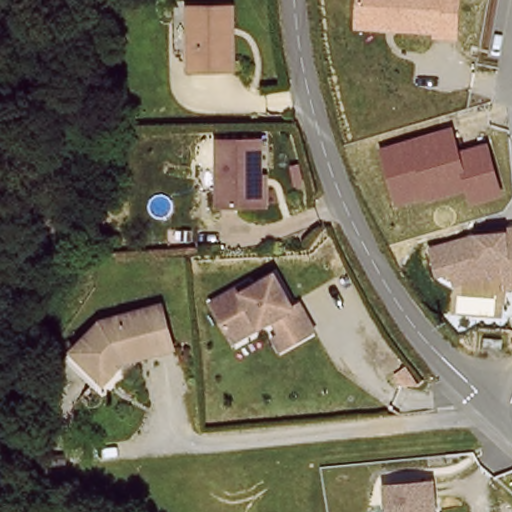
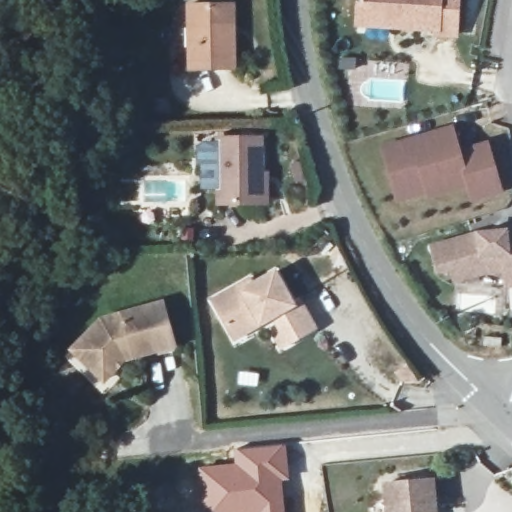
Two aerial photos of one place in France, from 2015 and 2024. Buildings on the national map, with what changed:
unchanged [(434,34),(357,28),(359,0),(461,0),(459,39),(434,38),(434,34)]
unchanged [(195,73),(194,53),(180,53),(179,9),(232,7),(239,7),(239,39),(240,72),(195,73)]
unchanged [(473,202),(469,190),(427,201),(425,196),(398,204),(381,149),(457,128),(464,150),(492,141),(506,194),(473,202)]
unchanged [(265,140),(267,206),(222,206),(222,140),(265,140)]
unchanged [(507,290),(504,274),(481,276),(457,287),(451,272),(440,275),(430,246),(477,231),(512,227),(512,289),(507,290)]
unchanged [(278,341),(285,337),(277,323),(264,331),(237,346),(231,335),(215,307),(242,291),(252,285),(255,290),(278,277),(297,310),(303,306),(320,334),(292,350),(285,354),(278,341)]
unchanged [(70,349),(99,318),(160,300),(173,343),(133,355),(131,349),(122,352),(124,358),(113,370),(103,380),(88,366),(70,349)]
new [(234,462),(233,449),(285,443),(290,481),(282,482),(285,512),(195,512),(194,466),(234,462)]
unchanged [(434,482),(438,512),(390,512),(387,488),(434,482)]

